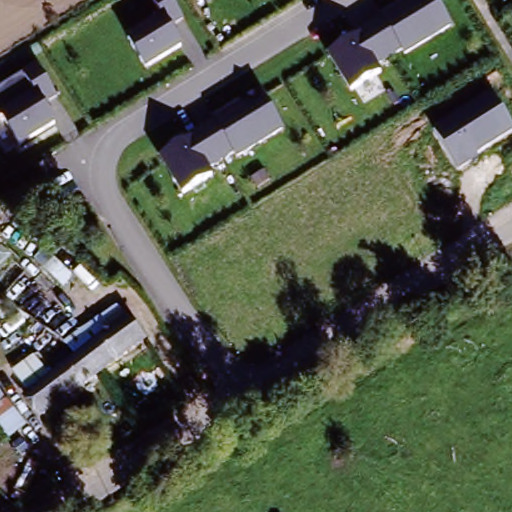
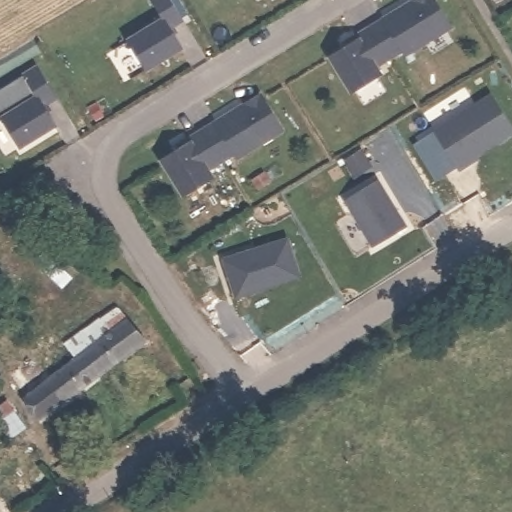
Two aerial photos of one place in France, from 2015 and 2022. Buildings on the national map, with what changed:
unchanged [(184,24),(172,29),(184,50),(145,72),(125,39),(159,19),(147,0),(170,0),(184,24)]
unchanged [(381,76),(348,95),(326,58),(337,50),(336,45),(411,0),(434,0),(452,30),(403,58),(400,53),(376,68),(381,76)]
unchanged [(36,65),(57,100),(46,106),(57,127),(19,150),(0,120),(0,117),(34,97),(20,74),(36,65)]
new [(0,117),(0,87),(20,74),(34,97),(0,117)]
unchanged [(214,178),(181,198),(157,160),(168,153),(167,148),(259,91),(285,132),(236,161),(232,155),(209,170),(214,178)]
unchanged [(491,94),(512,126),(512,133),(457,166),(433,130),(491,94)]
new [(407,226),(374,247),(343,197),(377,175),(407,226)]
new [(302,277),(236,300),(222,258),(288,237),(302,277)]
unchanged [(136,348),(89,384),(72,361),(65,366),(55,349),(90,325),(91,327),(110,314),(119,325),(127,336),(136,348)]
unchanged [(72,361),(89,384),(37,423),(20,401),(65,366),(72,361)]

